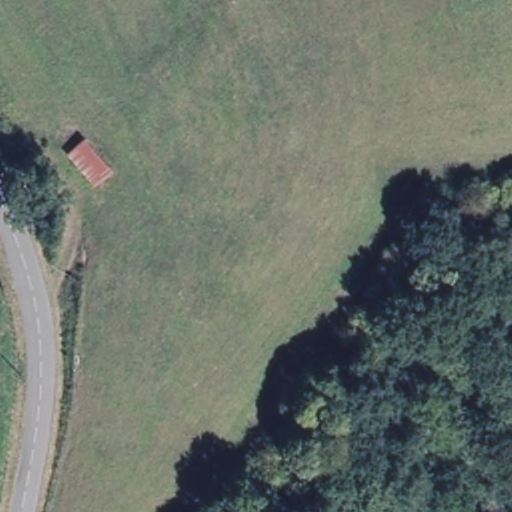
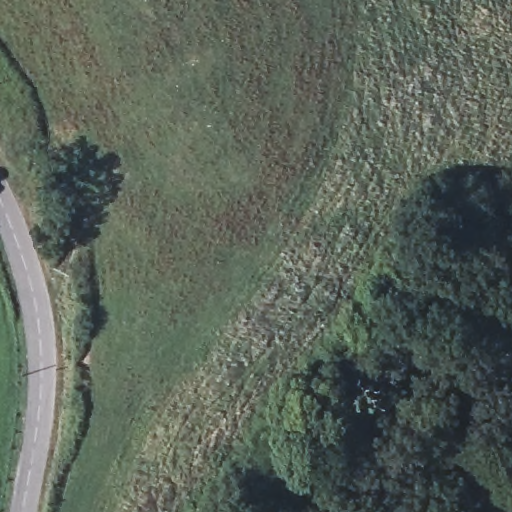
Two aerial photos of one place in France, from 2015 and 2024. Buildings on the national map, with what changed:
unchanged [(105,185),(66,147),(84,128),(121,171),(105,185)]

